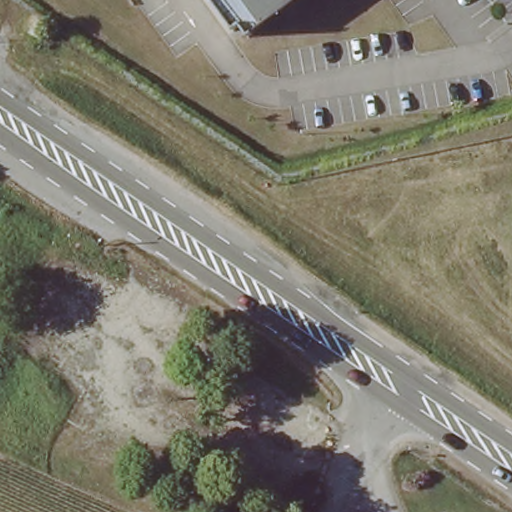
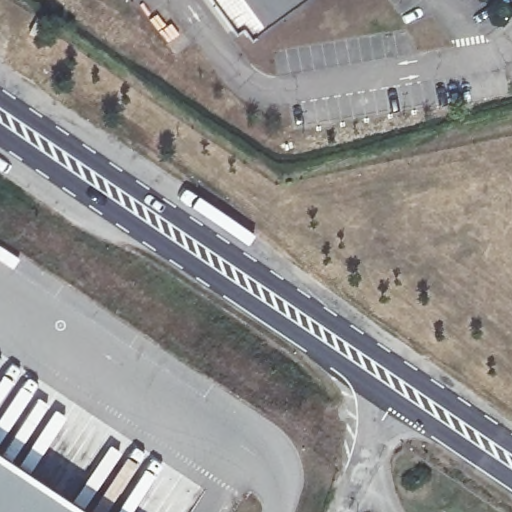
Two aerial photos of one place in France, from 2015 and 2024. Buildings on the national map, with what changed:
unchanged [(211,0),(288,0),(238,37),(211,0)]
new [(0,453),(90,512),(0,512),(0,453)]

